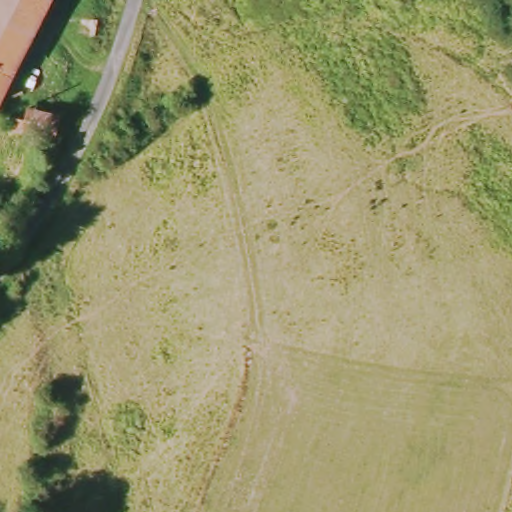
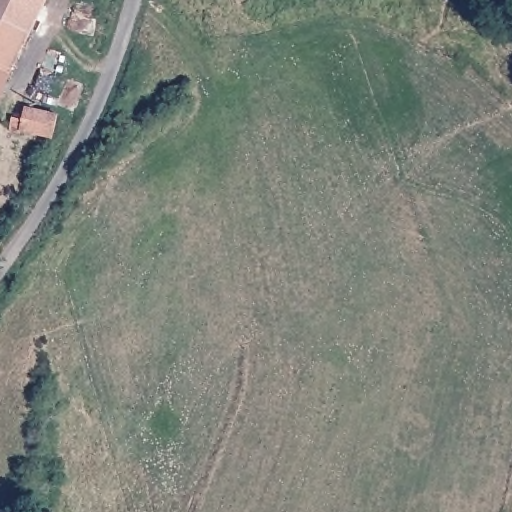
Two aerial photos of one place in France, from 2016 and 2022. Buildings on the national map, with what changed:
unchanged [(0,0),(50,0),(0,99),(0,0)]
unchanged [(51,137),(24,126),(32,103),(58,112),(51,137)]

